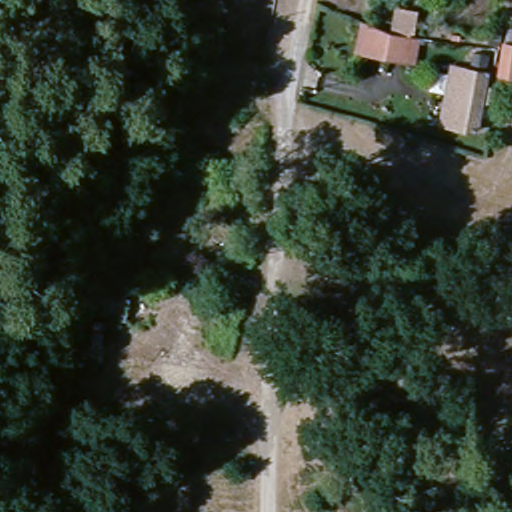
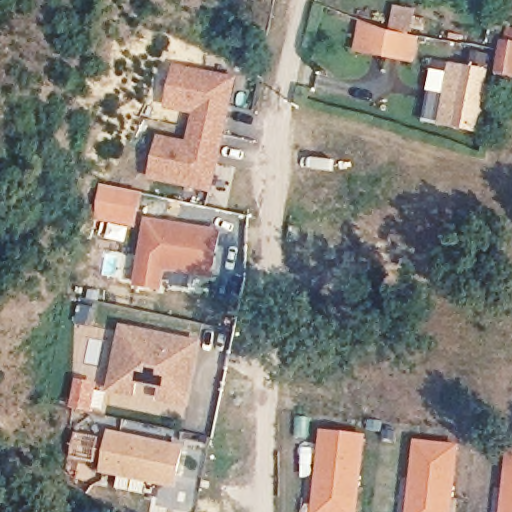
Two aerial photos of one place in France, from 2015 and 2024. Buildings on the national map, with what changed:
unchanged [(411,16),(407,34),(389,29),(392,12),(411,16)]
unchanged [(405,70),(398,68),(378,64),(351,60),(357,30),(383,38),(403,42),(410,43),(405,70)]
unchanged [(512,31),(512,76),(501,74),(507,30),(512,31)]
new [(238,78),(214,194),(149,180),(158,135),(186,141),(192,115),(163,109),(174,64),(238,78)]
unchanged [(446,73),(481,80),(471,129),(454,126),(453,133),(435,129),(439,110),(442,94),(446,73)]
new [(94,220),(101,185),(144,193),(137,227),(94,220)]
new [(224,229),(215,279),(166,270),(163,291),(135,286),(146,217),(224,229)]
demolished [(176,341),(145,332),(153,301),(184,310),(176,341)]
demolished [(84,321),(100,322),(99,362),(79,361),(84,321)]
new [(160,400),(162,389),(140,385),(137,396),(110,391),(121,324),(204,340),(190,405),(160,400)]
demolished [(195,363),(182,412),(145,402),(156,354),(195,363)]
new [(366,434),(356,512),(309,512),(319,429),(366,434)]
new [(102,472),(109,430),(186,446),(178,487),(102,472)]
new [(459,445),(452,512),(406,512),(411,439),(459,445)]
new [(508,448),(512,449),(512,512),(499,512),(502,485),(508,448)]

